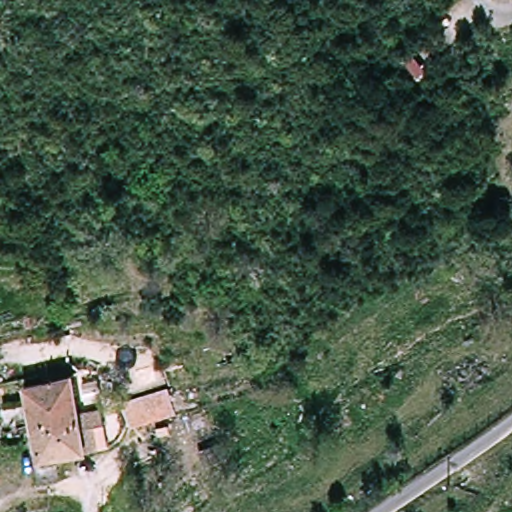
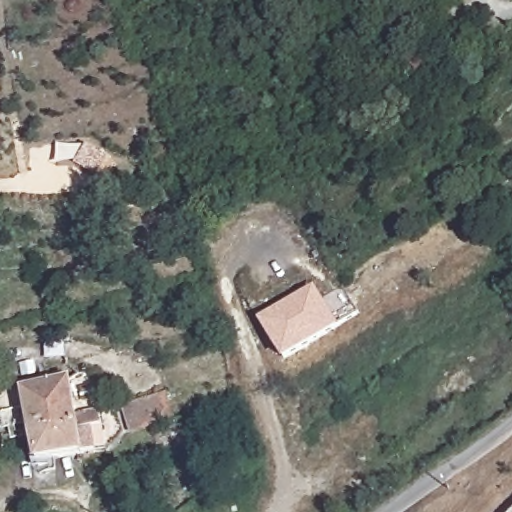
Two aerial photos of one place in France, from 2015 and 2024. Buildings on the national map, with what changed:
new [(263,319),(315,287),(341,328),(286,364),(264,322),(263,319)]
unchanged [(75,375),(82,410),(106,406),(109,421),(98,422),(103,447),(39,459),(23,386),(75,375)]
unchanged [(179,408),(182,419),(127,433),(121,403),(175,390),(179,408)]

